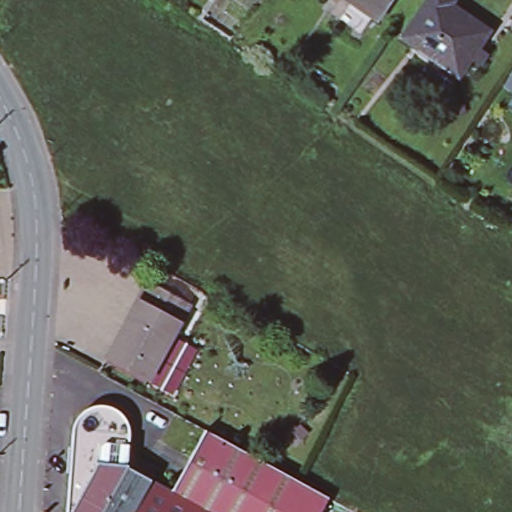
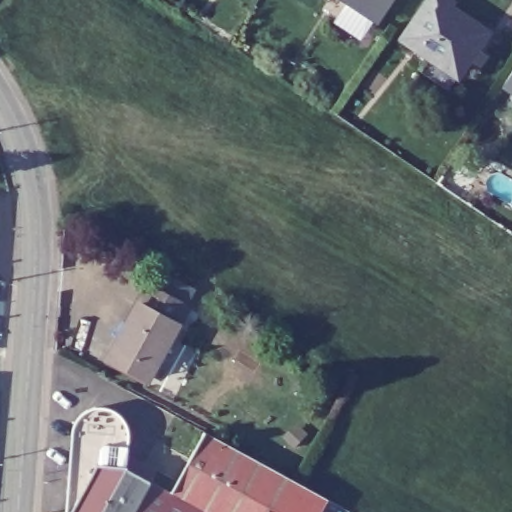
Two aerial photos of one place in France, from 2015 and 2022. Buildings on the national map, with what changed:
unchanged [(377,14),(357,0),(386,0),(377,14)]
unchanged [(425,0),(446,0),(451,3),(448,7),(486,34),(456,77),(399,38),(425,0)]
unchanged [(109,355),(127,322),(128,320),(139,300),(143,294),(149,282),(156,286),(189,305),(183,317),(179,322),(167,345),(149,377),(114,357),(109,355)]
unchanged [(176,477),(203,430),(328,497),(320,512),(65,512),(67,487),(71,430),(73,423),(74,421),(76,417),(80,412),(87,407),(94,405),(101,405),(109,406),(115,410),(121,415),(125,421),(128,428),(128,434),(127,450),(126,452),(133,456),(156,468),(150,478),(169,490),(176,477)]

